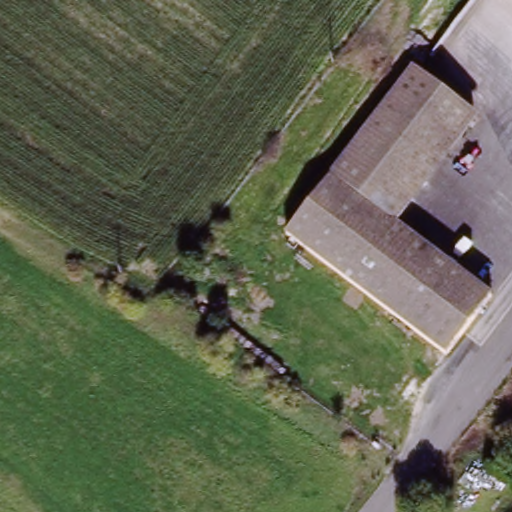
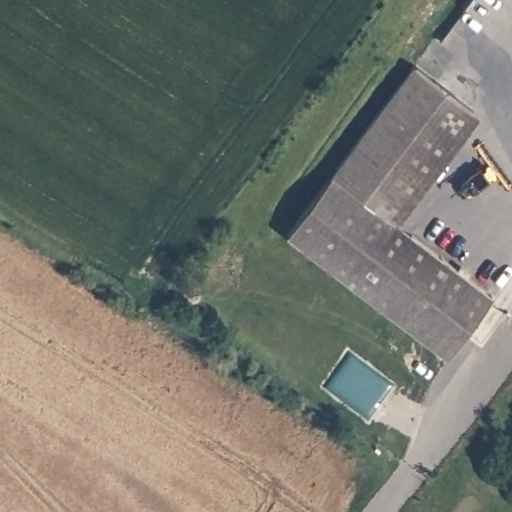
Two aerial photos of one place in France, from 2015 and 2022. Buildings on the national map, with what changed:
unchanged [(413,66),(473,110),(394,219),(333,175),(413,66)]
unchanged [(289,236),(333,175),(394,219),(495,293),(451,354),(289,236)]

